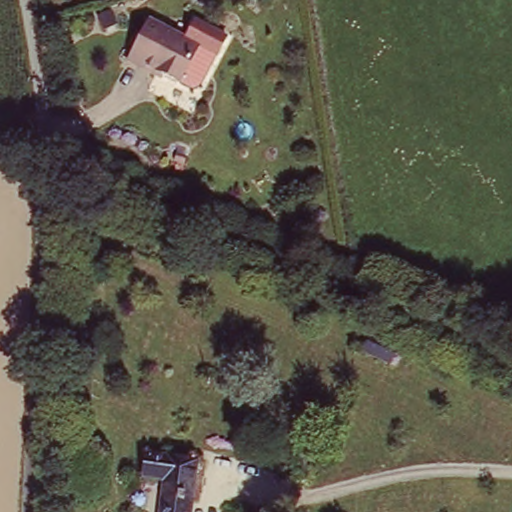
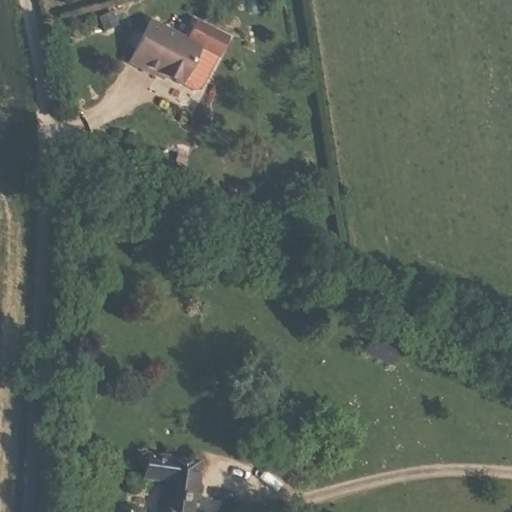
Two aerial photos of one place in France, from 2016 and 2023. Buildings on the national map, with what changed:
unchanged [(147,19),(183,36),(193,18),(227,39),(197,94),(179,87),(130,62),(147,19)]
unchanged [(396,345),(388,362),(363,351),(371,335),(396,345)]
unchanged [(196,458),(188,512),(159,512),(164,476),(142,472),(145,450),(196,458)]

